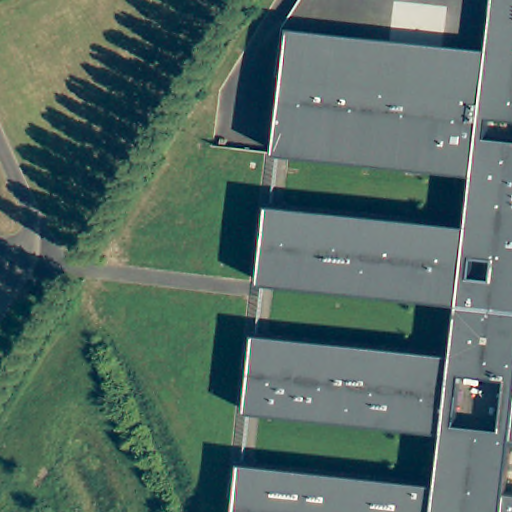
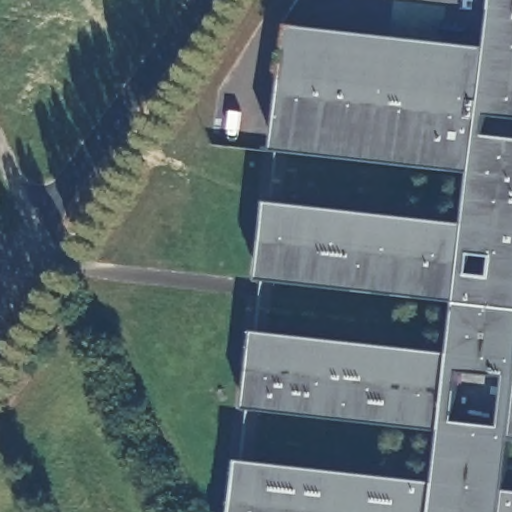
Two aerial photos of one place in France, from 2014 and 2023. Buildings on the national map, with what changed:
unchanged [(244,462),(440,485),(447,433),(251,411),(259,333),(454,355),(460,303),(264,282),(273,206),(467,225),(473,175),(277,152),(292,28),(488,49),(494,0),(512,0),(512,120),(489,117),(487,137),(512,139),(512,457),(507,491),(512,491),(512,512),(237,512),(244,462)]

